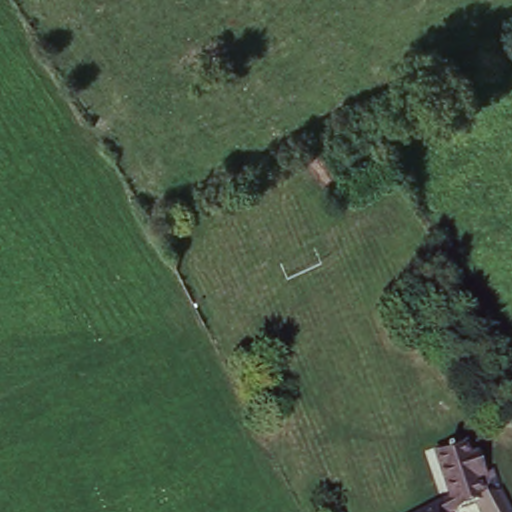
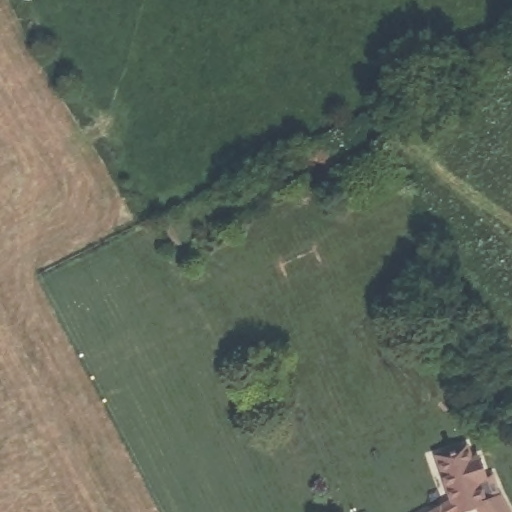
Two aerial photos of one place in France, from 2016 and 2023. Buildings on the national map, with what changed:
unchanged [(477,512),(476,509),(469,512),(427,512),(449,500),(434,460),(469,442),(511,512),(477,512)]

